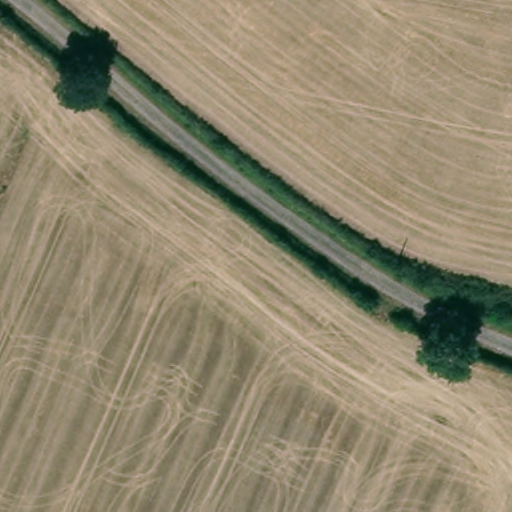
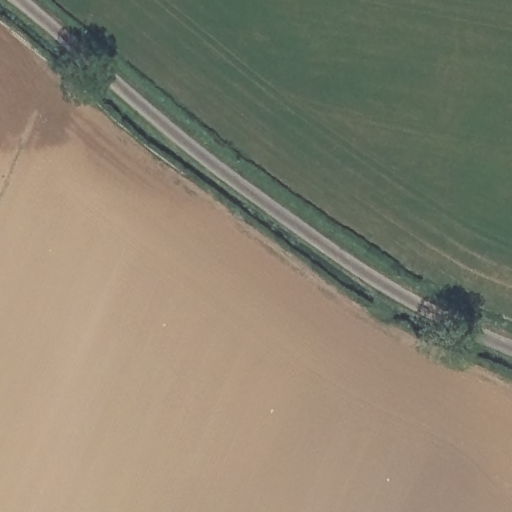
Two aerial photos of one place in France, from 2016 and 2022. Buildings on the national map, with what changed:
[]

